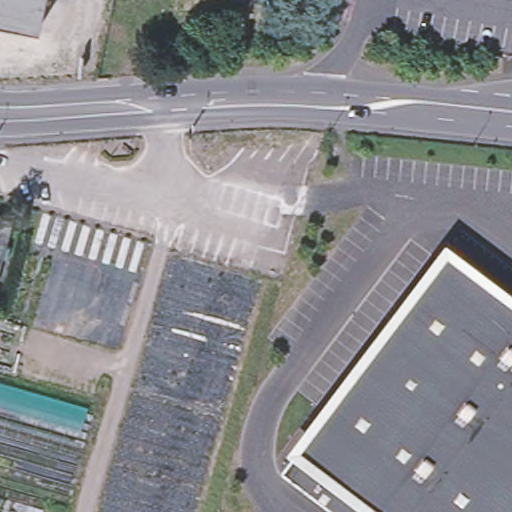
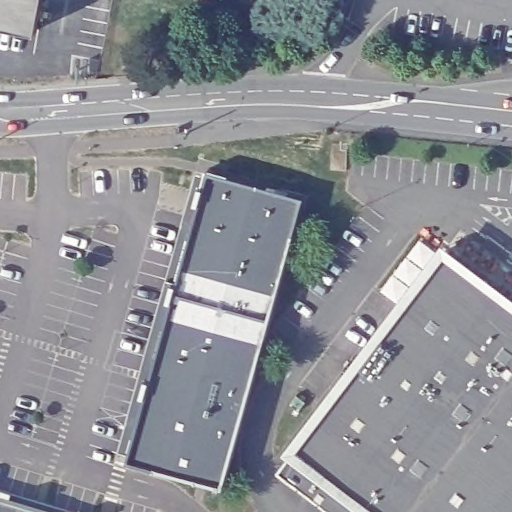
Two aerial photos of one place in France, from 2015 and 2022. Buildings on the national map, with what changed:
unchanged [(0,22),(0,0),(45,0),(40,29),(0,22)]
new [(132,451),(122,450),(195,172),(207,175),(208,169),(305,197),(224,484),(130,457),(132,451)]
demolished [(0,251),(0,232),(5,234),(0,251)]
unchanged [(512,301),(512,512),(335,512),(275,467),(438,247),(512,301)]
new [(0,509),(9,512),(0,512),(0,509)]

